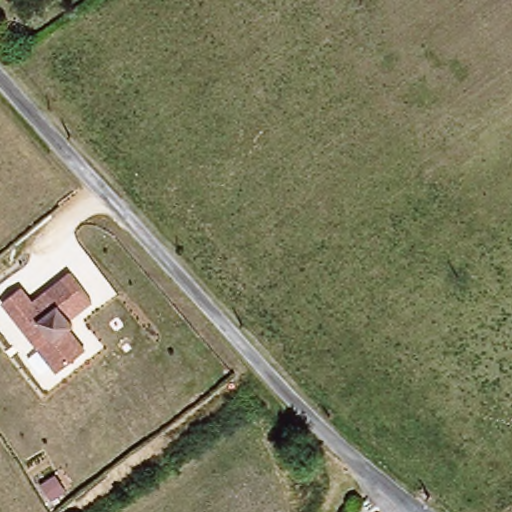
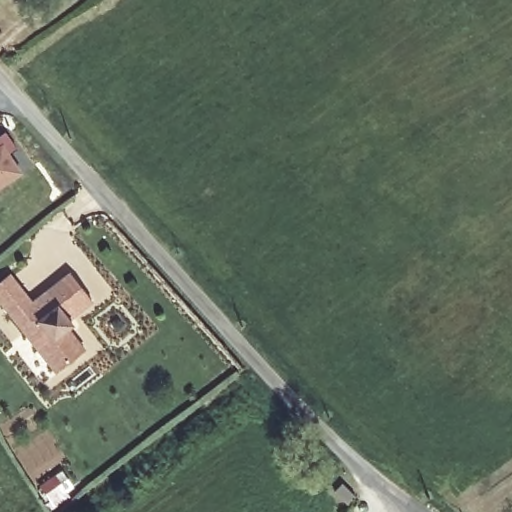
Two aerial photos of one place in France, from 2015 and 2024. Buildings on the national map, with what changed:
new [(7,146),(25,174),(0,191),(0,151),(7,146)]
unchanged [(93,301),(67,324),(87,350),(56,375),(1,305),(22,287),(32,301),(70,272),(93,301)]

